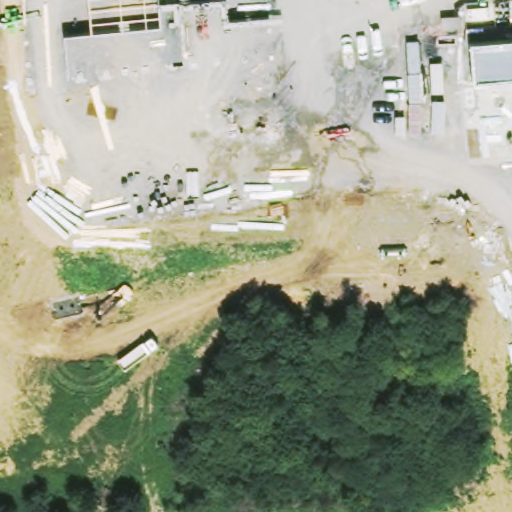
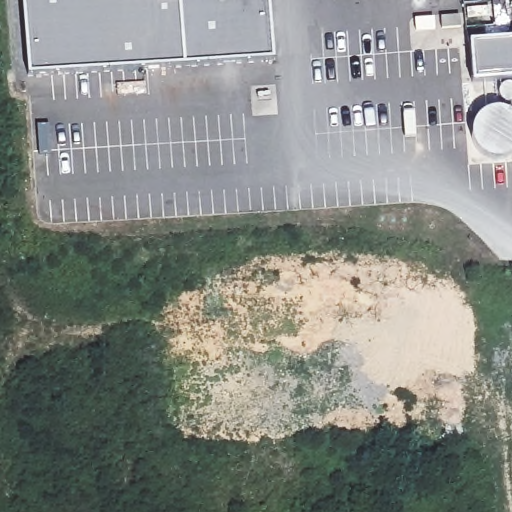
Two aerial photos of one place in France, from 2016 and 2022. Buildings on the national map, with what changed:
new [(28,78),(22,0),(269,0),(274,59),(28,78)]
unchanged [(512,80),(473,83),(469,43),(512,40),(512,80)]

